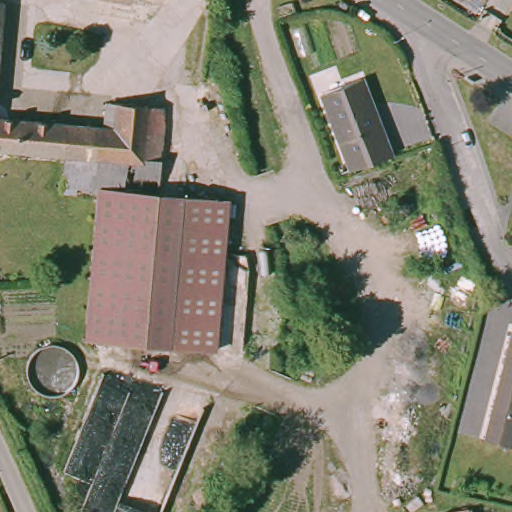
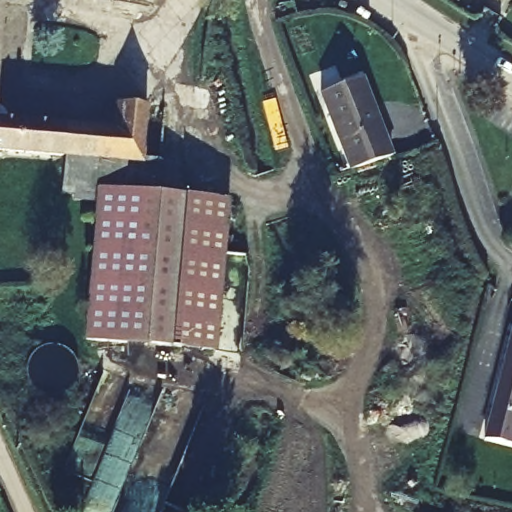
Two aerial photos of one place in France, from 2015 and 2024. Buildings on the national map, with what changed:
unchanged [(455,0),(460,0),(459,2),(455,0)]
unchanged [(361,79),(385,140),(345,155),(322,93),(361,79)]
unchanged [(160,101),(154,187),(72,181),(71,189),(57,188),(60,151),(0,147),(0,114),(98,122),(100,104),(101,97),(111,98),(160,101)]
unchanged [(224,195),(211,346),(81,335),(93,185),(224,195)]
unchanged [(512,332),(512,447),(485,440),(512,332)]

